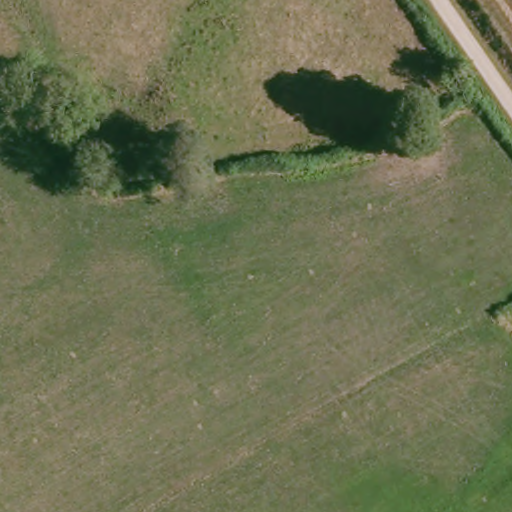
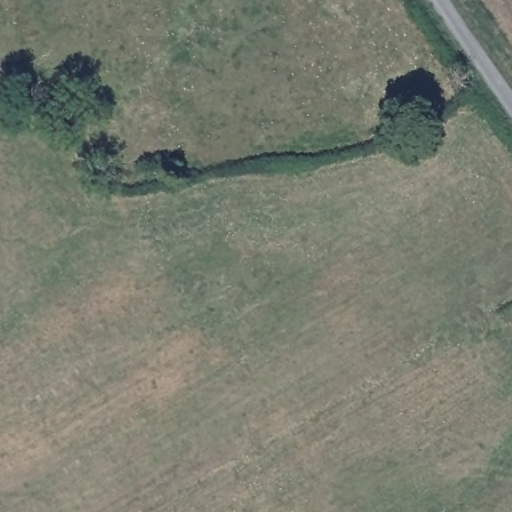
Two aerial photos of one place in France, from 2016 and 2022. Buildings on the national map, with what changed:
[]

